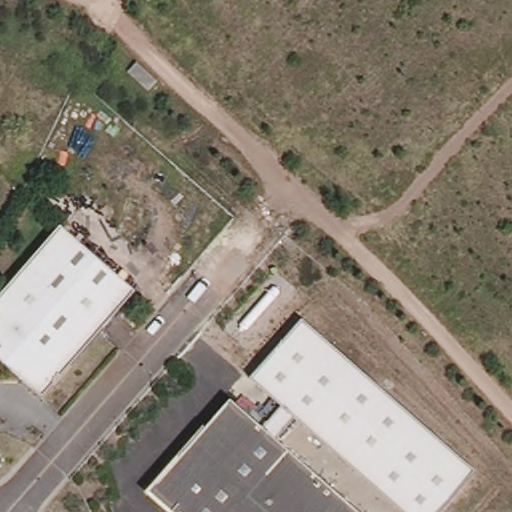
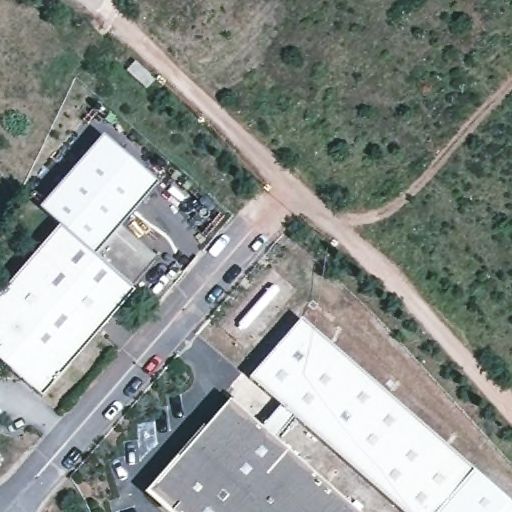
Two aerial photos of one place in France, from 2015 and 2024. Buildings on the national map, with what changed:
new [(121,226),(157,257),(128,290),(58,227),(61,225),(41,208),(106,137),(159,183),(121,226)]
unchanged [(135,295),(46,401),(0,360),(0,298),(58,227),(135,295)]
unchanged [(476,470),(436,512),(406,512),(296,417),(277,442),(260,427),(281,405),(253,377),(304,320),(476,470)]
unchanged [(228,399),(260,427),(277,442),(358,512),(176,512),(152,491),(228,399)]
new [(436,512),(476,470),(512,502),(512,512),(436,512)]

